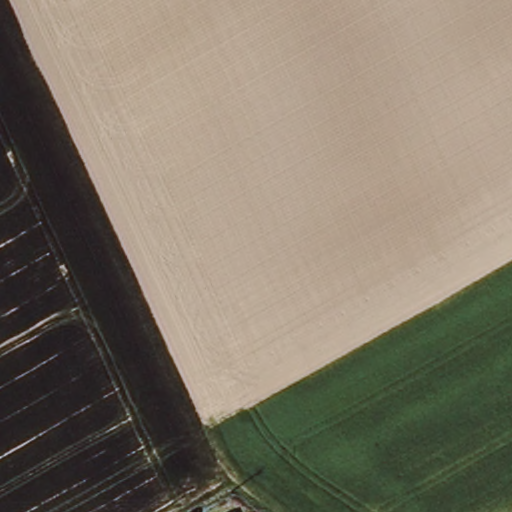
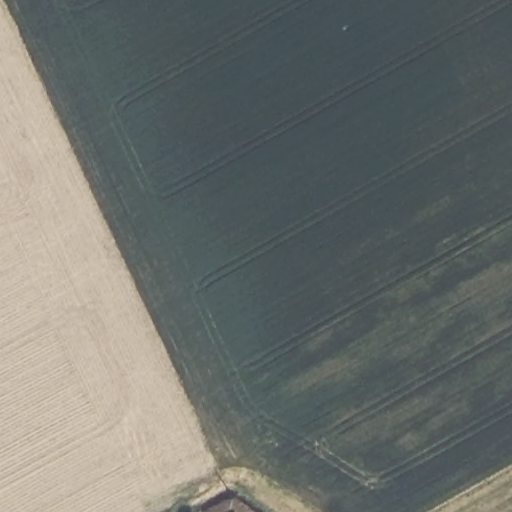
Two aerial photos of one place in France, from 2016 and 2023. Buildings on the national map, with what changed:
[]

